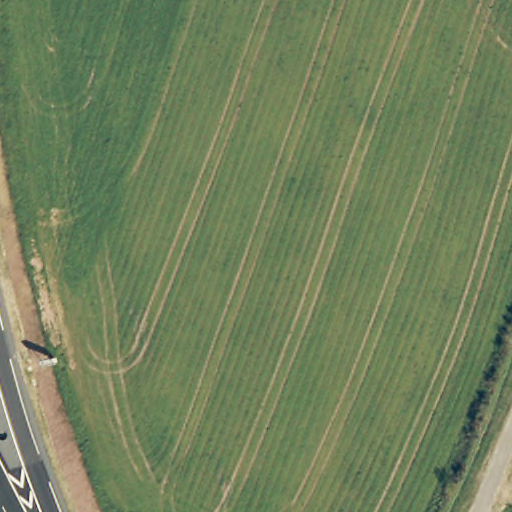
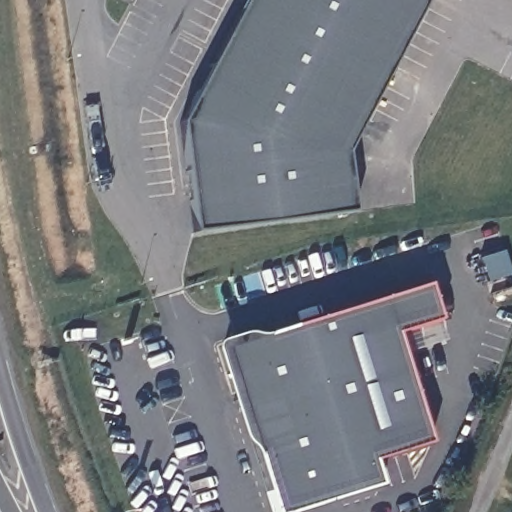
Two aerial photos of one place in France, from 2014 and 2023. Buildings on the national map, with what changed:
new [(345,152),(353,210),(195,231),(181,124),(245,0),(425,0),(345,152)]
new [(501,252),(508,276),(485,283),(477,259),(501,252)]
new [(255,452),(249,444),(246,442),(242,437),(215,350),(216,345),(217,343),(224,340),(238,335),(246,333),(254,334),(261,336),(267,336),(428,285),(438,319),(393,333),(429,442),(371,461),(378,485),(294,512),(275,512),(258,459),(255,452)]

